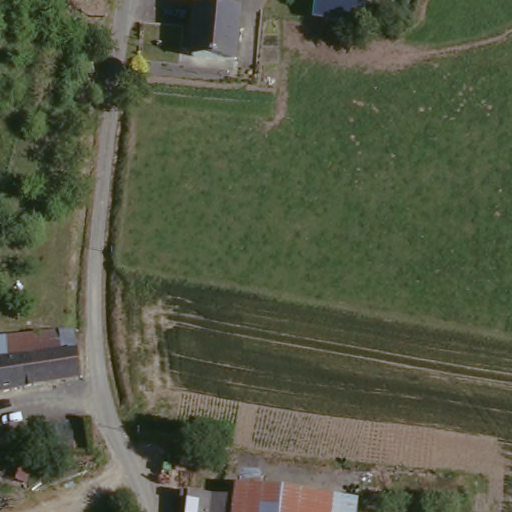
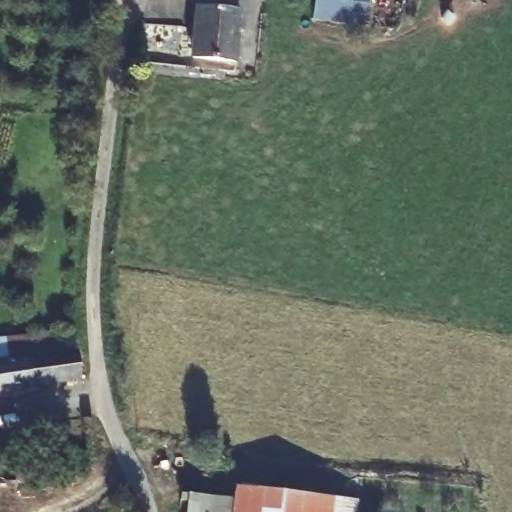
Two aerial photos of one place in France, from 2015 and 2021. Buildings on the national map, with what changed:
unchanged [(315,0),(369,0),(366,25),(313,19),(315,0)]
unchanged [(193,56),(198,5),(221,8),(242,10),(237,61),(193,56)]
unchanged [(76,322),(81,376),(0,390),(0,330),(76,322)]
unchanged [(362,500),(361,512),(194,512),(195,498),(187,497),(188,487),(239,496),(242,483),(242,482),(362,500)]

